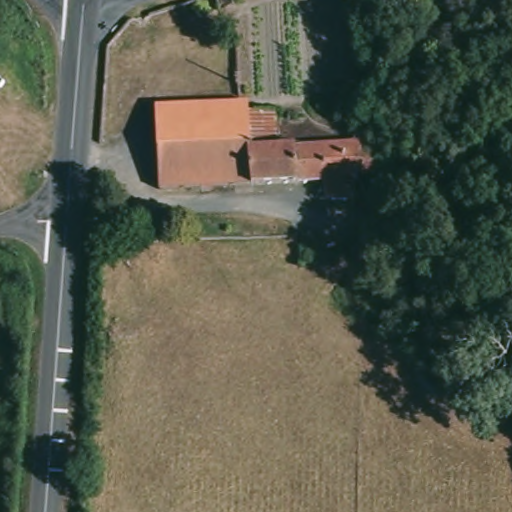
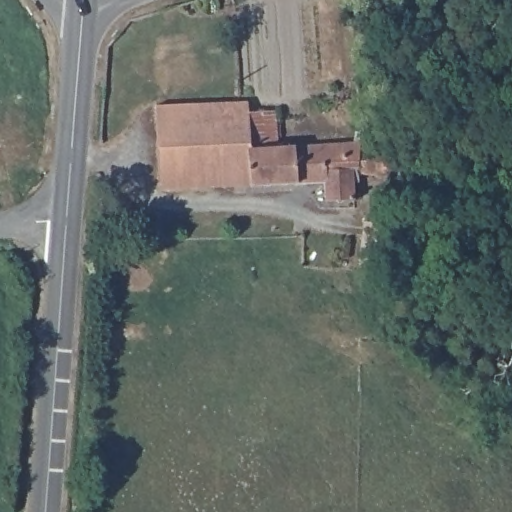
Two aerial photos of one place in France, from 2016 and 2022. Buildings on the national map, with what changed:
unchanged [(212,0),(230,0),(230,13),(209,18),(205,2),(212,0)]
unchanged [(244,101),(248,130),(264,130),(268,151),(320,152),(322,160),(333,159),(337,172),(346,171),(353,203),(321,205),(321,189),(161,192),(159,105),(244,101)]
unchanged [(359,147),(370,148),(378,149),(376,158),(390,159),(389,170),(404,171),(399,203),(384,200),(385,175),(354,173),(359,147)]
unchanged [(378,232),(372,271),(352,268),(354,232),(378,232)]

